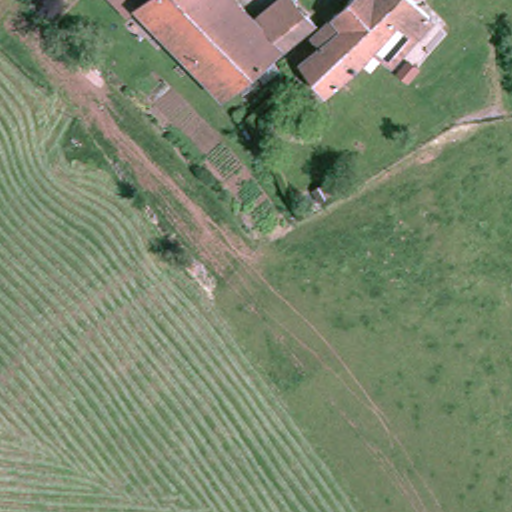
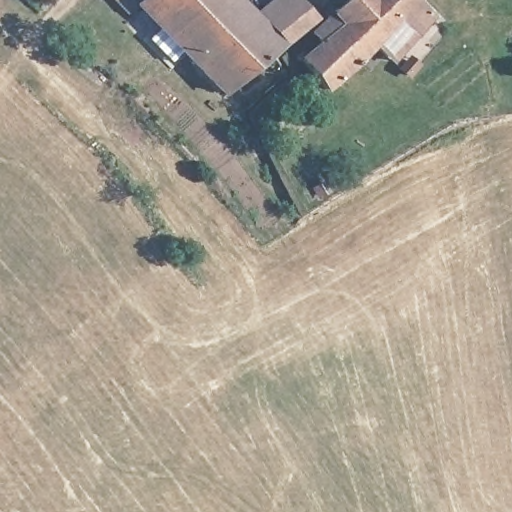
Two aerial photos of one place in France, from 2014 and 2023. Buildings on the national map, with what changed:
unchanged [(122,0),(135,0),(128,6),(122,0)]
unchanged [(262,0),(297,0),(307,11),(266,49),(224,88),(141,0),(240,0),(250,11),(262,0)]
unchanged [(352,50),(355,53),(341,65),(340,63),(320,83),(295,53),(312,39),(305,31),(322,16),(316,9),(323,3),(326,7),(334,0),(416,0),(427,11),(408,29),(385,52),(368,34),(352,50)]

